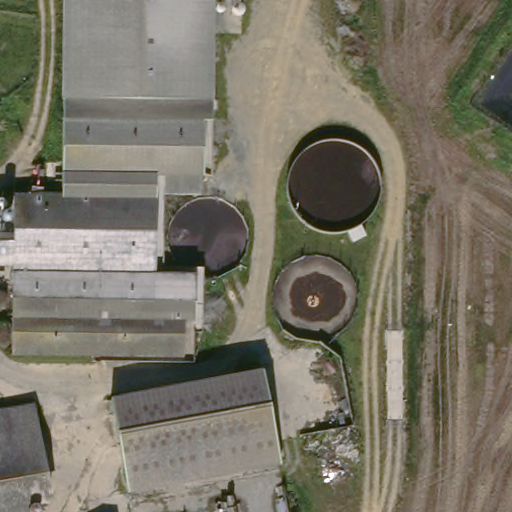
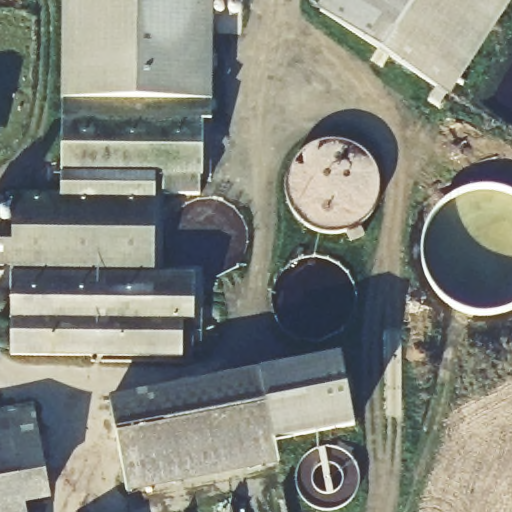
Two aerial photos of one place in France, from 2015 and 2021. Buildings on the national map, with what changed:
unchanged [(209,119),(77,119),(77,196),(60,196),(62,0),(210,0),(209,119)]
new [(322,0),(512,0),(512,5),(451,97),(317,8),(322,0)]
unchanged [(23,269),(1,268),(2,234),(24,234),(24,196),(60,196),(77,196),(77,119),(209,119),(208,174),(205,174),(205,193),(170,193),(170,174),(162,174),(162,197),(160,271),(204,273),(201,315),(190,314),(188,353),(21,349),(23,269)]
new [(341,357),(355,429),(280,443),(266,371),(341,357)]
unchanged [(265,370),(266,370),(283,465),(129,493),(112,398),(234,375),(234,376),(265,370)]
unchanged [(37,403),(51,491),(29,495),(31,512),(0,512),(0,410),(37,403)]

